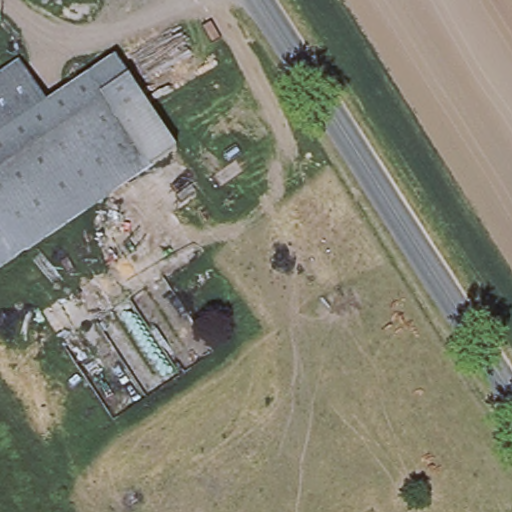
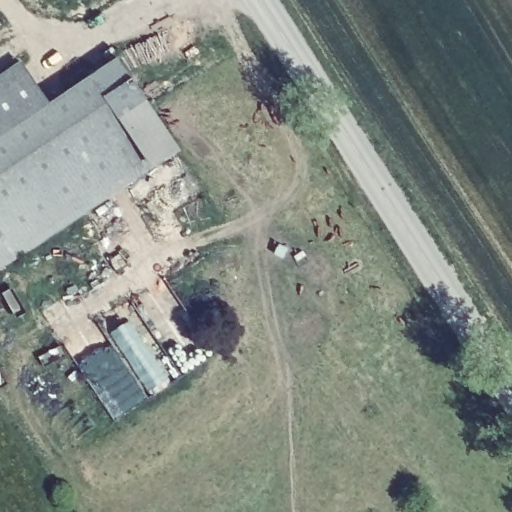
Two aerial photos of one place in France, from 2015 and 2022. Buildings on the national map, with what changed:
unchanged [(125,75),(172,146),(145,164),(0,260),(0,126),(42,99),(89,68),(112,54),(125,75)]
unchanged [(0,65),(15,56),(42,99),(0,126),(0,65)]

